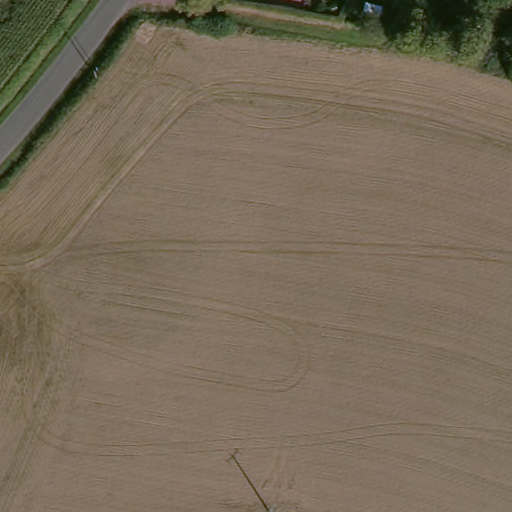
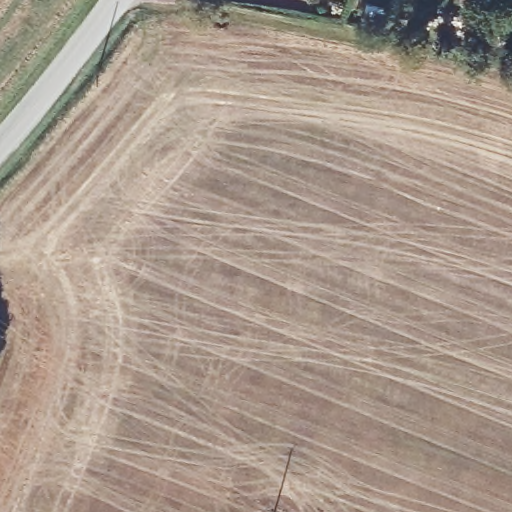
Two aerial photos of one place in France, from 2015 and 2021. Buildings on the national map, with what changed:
[]

